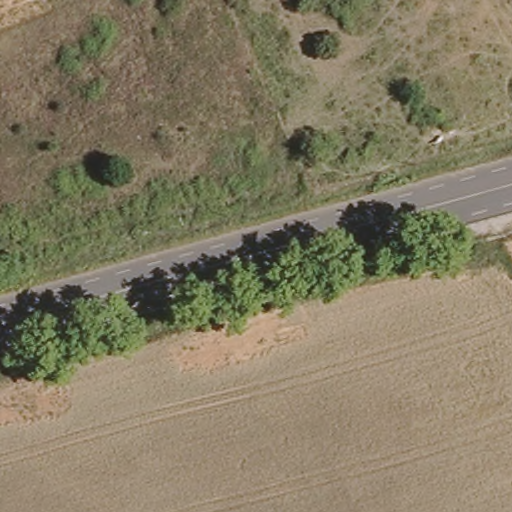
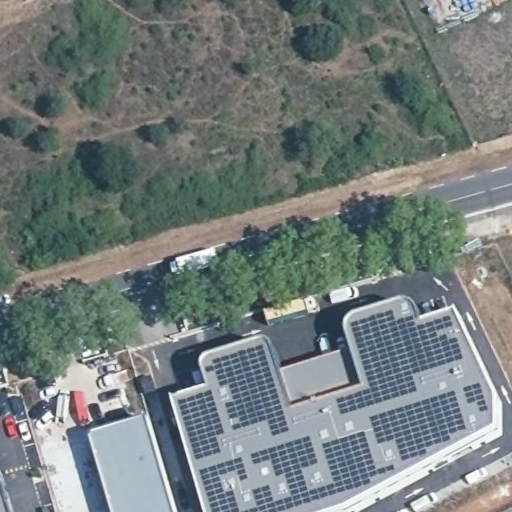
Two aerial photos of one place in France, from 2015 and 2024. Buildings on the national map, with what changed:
new [(211,392),(204,367),(216,361),(274,346),(285,373),(342,356),(339,345),(350,342),(350,330),(358,322),(400,307),(419,305),(427,324),(465,312),(474,340),(502,400),(503,437),(403,491),(359,512),(206,512),(175,404),(211,392)]
new [(151,421),(178,512),(113,512),(91,438),(151,421)]
new [(13,512),(0,512),(0,469),(13,512)]

